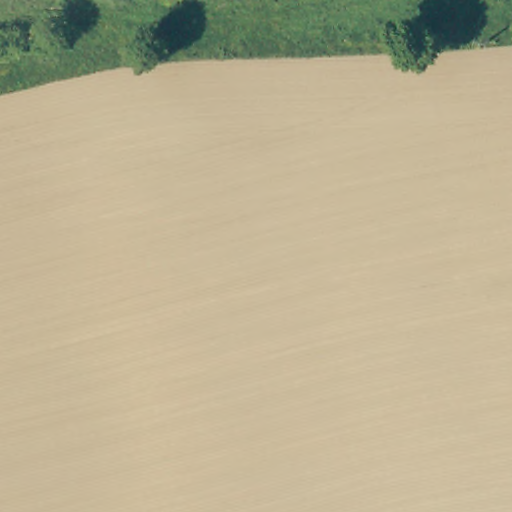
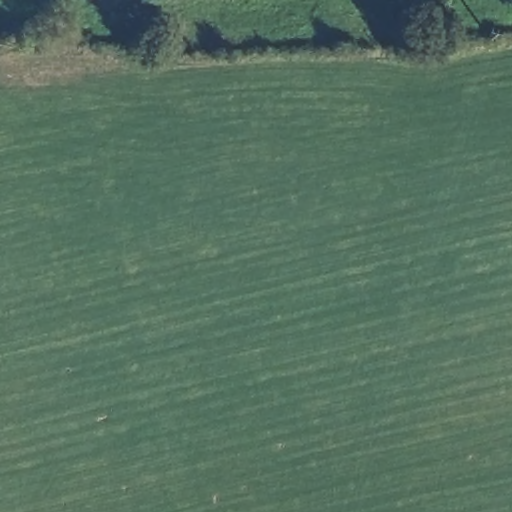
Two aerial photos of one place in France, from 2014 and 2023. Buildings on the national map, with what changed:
[]

